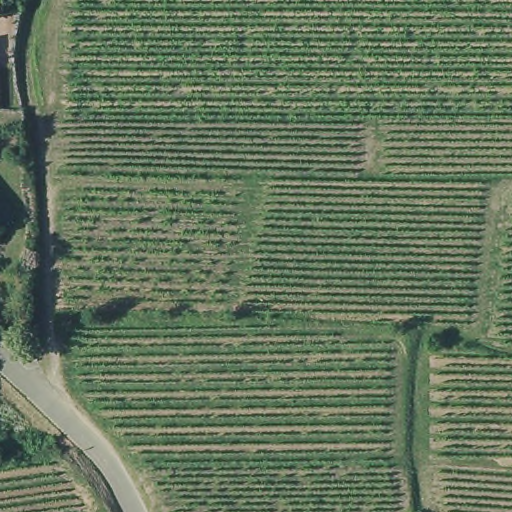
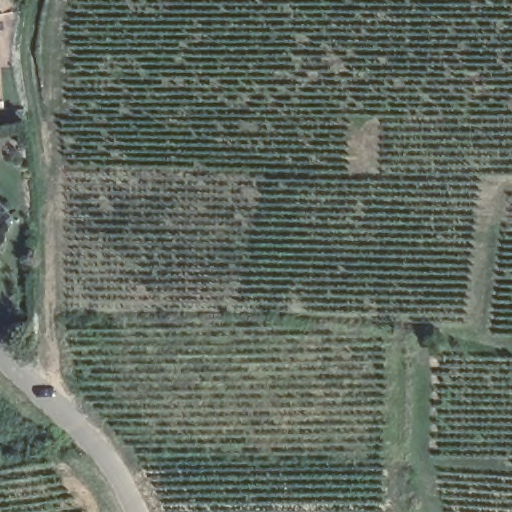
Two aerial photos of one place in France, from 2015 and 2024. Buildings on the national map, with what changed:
unchanged [(7,211),(0,217),(0,203),(7,211)]

